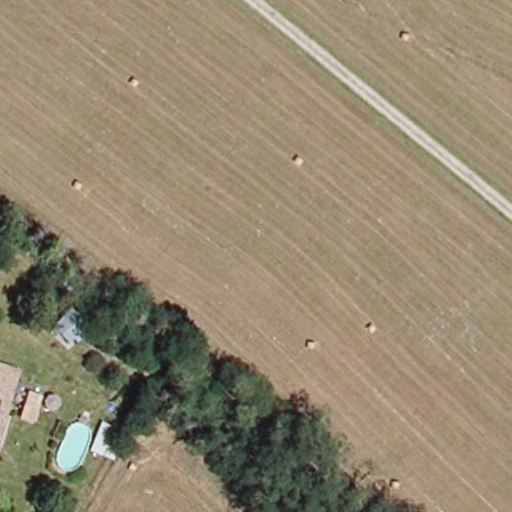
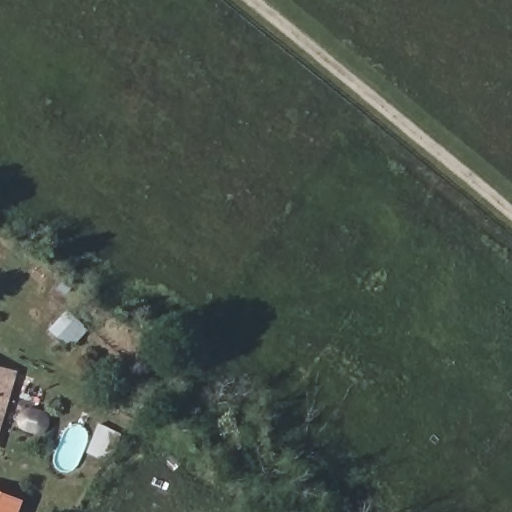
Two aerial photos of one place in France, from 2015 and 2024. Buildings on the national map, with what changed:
unchanged [(5,367),(0,383),(0,366),(5,367)]
unchanged [(6,406),(0,430),(0,404),(6,406)]
new [(18,512),(0,512),(0,490),(24,499),(18,512)]

